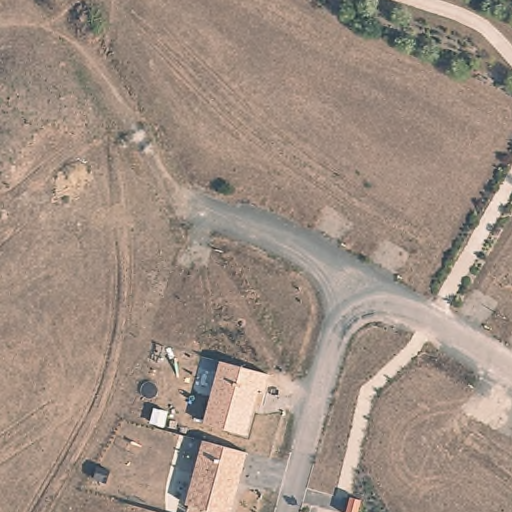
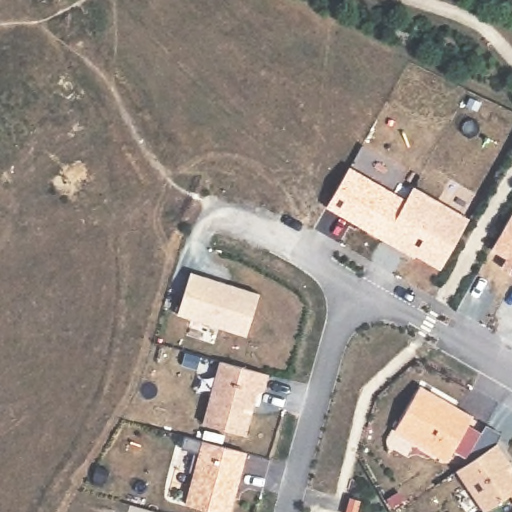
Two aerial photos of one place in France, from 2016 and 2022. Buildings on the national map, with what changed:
new [(348,167),(404,199),(380,240),(324,208),(348,167)]
new [(404,199),(412,186),(469,218),(440,270),(414,255),(412,258),(380,240),(404,199)]
unchanged [(505,259),(491,250),(512,214),(512,273),(501,266),(505,259)]
new [(191,273),(259,294),(246,336),(178,314),(191,273)]
unchanged [(219,360),(268,374),(264,391),(260,391),(247,436),(201,424),(219,360)]
new [(420,387),(473,417),(450,457),(438,450),(435,455),(394,431),(420,387)]
unchanged [(456,469),(481,453),(471,448),(483,423),(502,434),(498,443),(512,465),(512,492),(483,512),(456,469)]
unchanged [(233,512),(212,512),(183,506),(201,441),(248,453),(233,512)]
new [(512,499),(509,494),(512,492),(512,499)]

